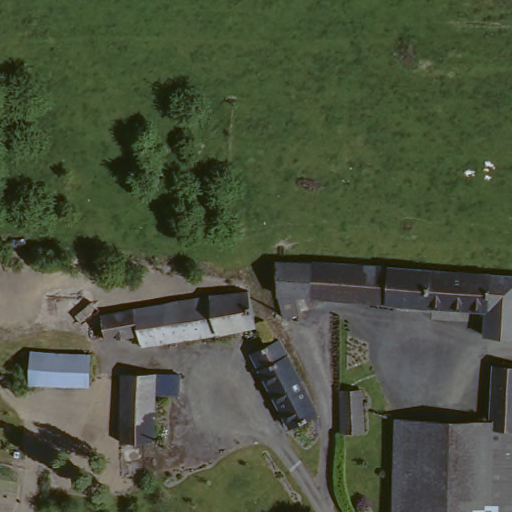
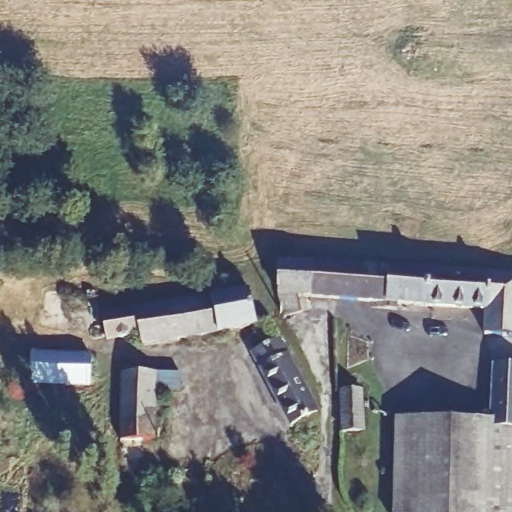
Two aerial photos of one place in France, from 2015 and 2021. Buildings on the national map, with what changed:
unchanged [(484,336),(483,308),(279,292),(281,257),(512,271),(512,337),(484,336)]
unchanged [(101,310),(253,285),(261,322),(131,341),(130,334),(104,336),(101,310)]
unchanged [(315,419),(289,428),(259,348),(288,340),(315,419)]
unchanged [(36,386),(34,359),(90,355),(93,381),(36,386)]
unchanged [(120,375),(168,370),(171,395),(156,397),(158,408),(159,417),(168,416),(170,439),(147,441),(117,444),(120,375)]
unchanged [(512,373),(512,426),(490,426),(489,373),(512,373)]
unchanged [(345,393),(364,394),(364,434),(346,434),(344,433),(345,393)]
unchanged [(474,426),(476,512),(398,512),(394,426),(474,426)]
unchanged [(512,426),(512,512),(476,512),(474,426),(490,426),(512,426)]

